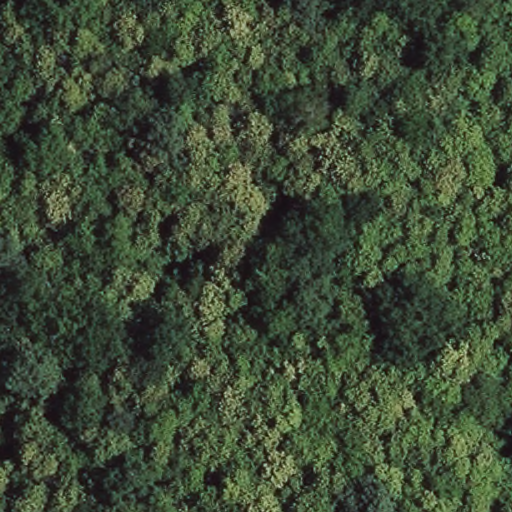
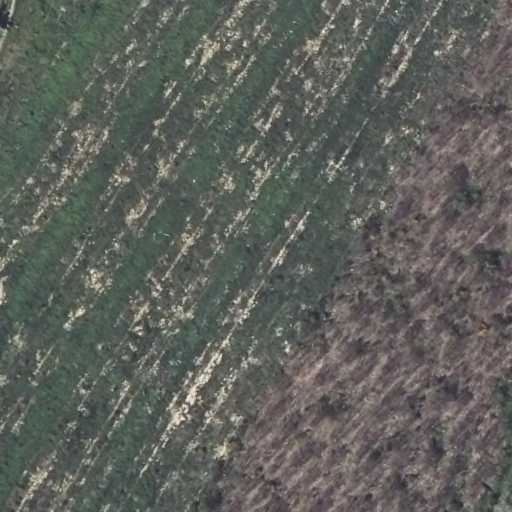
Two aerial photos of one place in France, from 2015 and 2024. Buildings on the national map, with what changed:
[]

